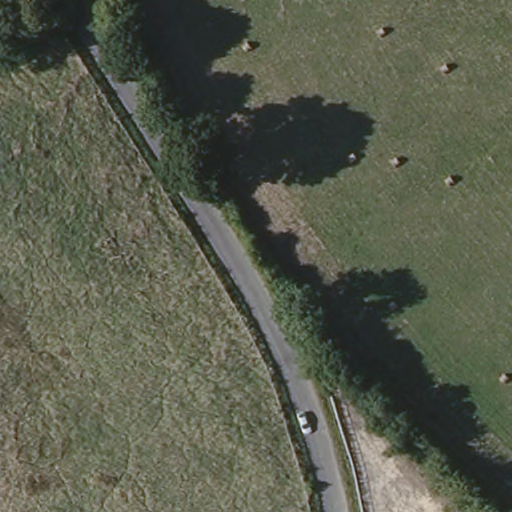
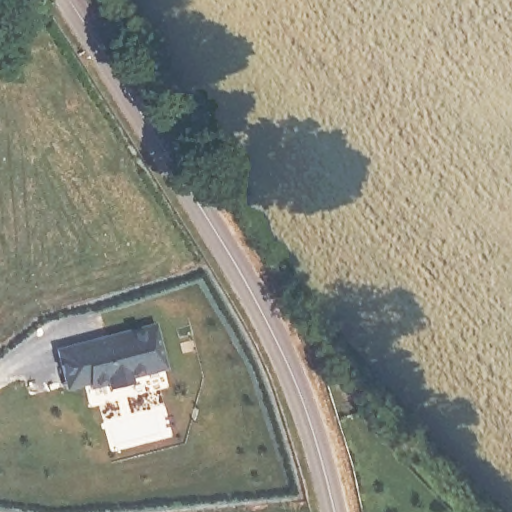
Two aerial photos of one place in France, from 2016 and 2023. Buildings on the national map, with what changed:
new [(156,326),(165,365),(92,385),(91,380),(67,386),(59,351),(156,326)]

